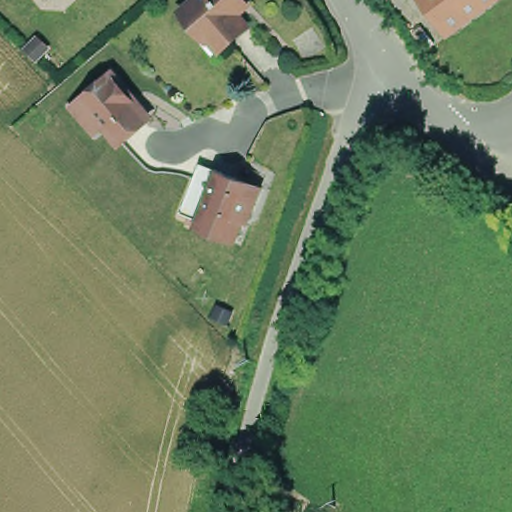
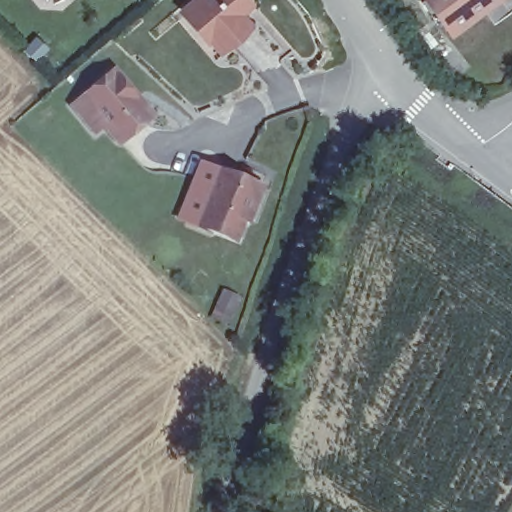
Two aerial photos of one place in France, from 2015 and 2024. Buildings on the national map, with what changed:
unchanged [(197,34),(175,7),(184,0),(233,0),(225,9),(235,25),(217,41),(209,47),(197,34)]
unchanged [(432,0),(486,0),(452,26),(432,0)]
unchanged [(84,91),(113,69),(149,114),(121,138),(107,121),(90,133),(67,106),(84,91)]
unchanged [(229,175),(209,226),(190,217),(209,167),(229,175)]
unchanged [(275,194),(267,214),(260,214),(249,243),(209,226),(229,175),(275,194)]

